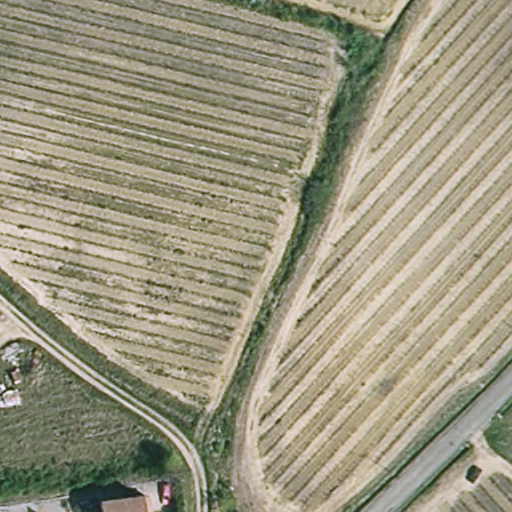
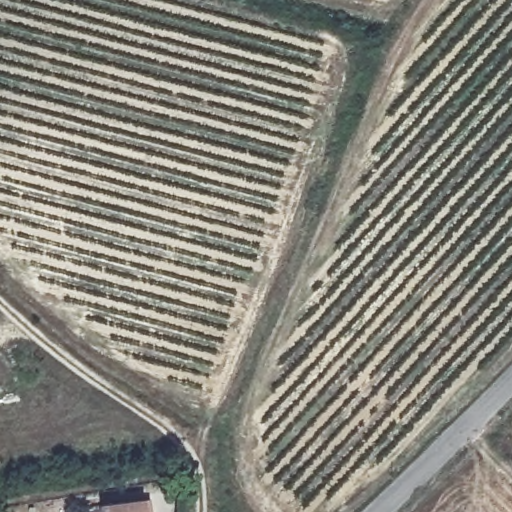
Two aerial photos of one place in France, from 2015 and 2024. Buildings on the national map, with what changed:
unchanged [(140,496),(142,512),(98,512),(96,502),(140,496)]

